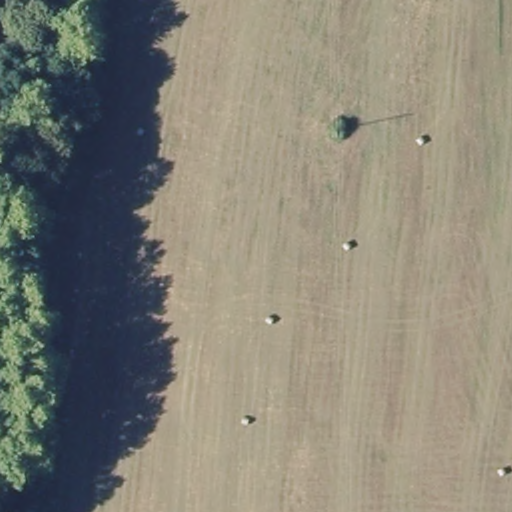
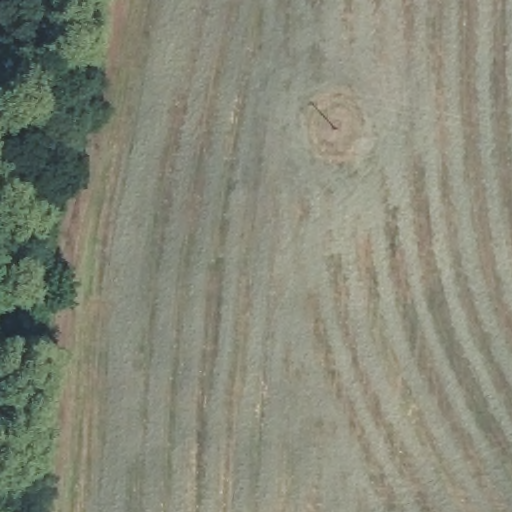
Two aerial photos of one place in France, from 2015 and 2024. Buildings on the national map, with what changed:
unchanged [(50,305),(64,243),(93,251),(80,312),(50,305)]

